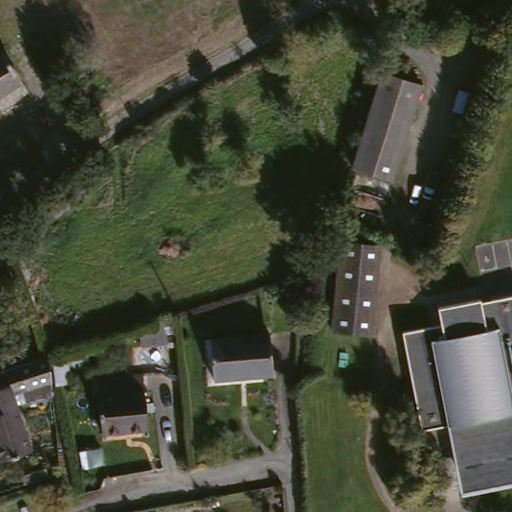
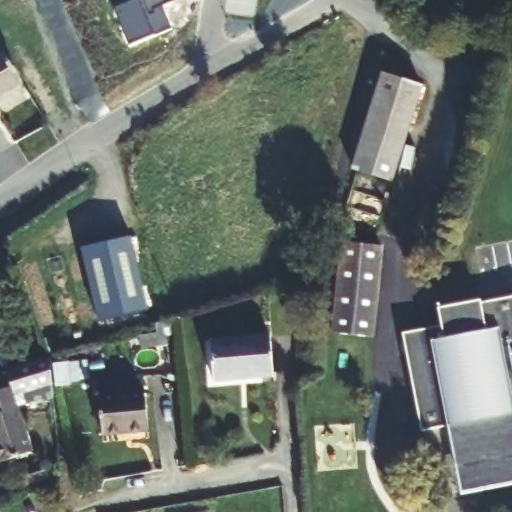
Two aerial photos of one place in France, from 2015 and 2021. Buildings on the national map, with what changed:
demolished [(0,2),(0,0),(4,0),(0,2)]
new [(179,0),(164,6),(174,28),(130,47),(114,8),(133,0),(178,0),(179,0)]
unchanged [(0,60),(16,86),(0,95),(0,60)]
unchanged [(382,80),(422,91),(395,186),(355,175),(382,80)]
demolished [(25,141),(40,169),(0,186),(0,151),(25,141)]
new [(130,237),(148,311),(99,322),(81,248),(130,237)]
unchanged [(337,242),(381,249),(367,342),(325,337),(337,242)]
unchanged [(427,429),(412,330),(451,324),(448,307),(493,301),(493,304),(512,301),(512,458),(457,466),(451,425),(427,429)]
unchanged [(266,338),(268,377),(210,381),(209,343),(266,338)]
unchanged [(54,385),(14,398),(12,390),(7,368),(14,366),(51,352),(54,385)]
unchanged [(117,400),(116,381),(147,380),(147,437),(100,437),(99,399),(117,400)]
unchanged [(26,457),(0,462),(0,392),(12,390),(14,398),(26,457)]
unchanged [(512,483),(460,490),(457,466),(512,458),(512,483)]

